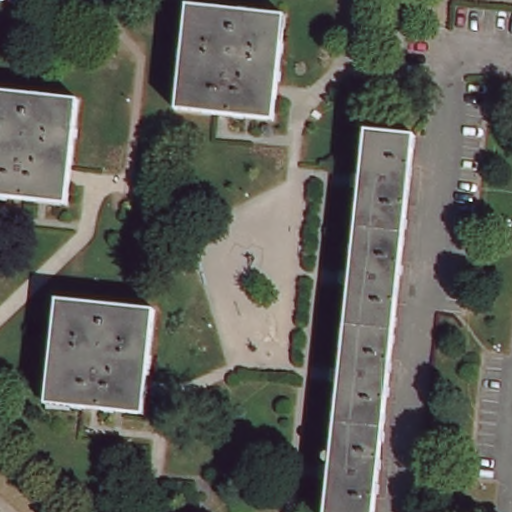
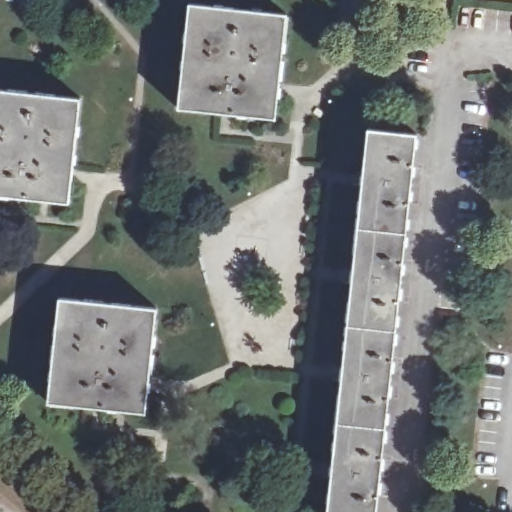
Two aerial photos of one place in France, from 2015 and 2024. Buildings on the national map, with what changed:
unchanged [(177,109),(189,4),(287,15),(276,120),(177,109)]
unchanged [(0,93),(83,102),(70,202),(0,195),(0,93)]
unchanged [(374,512),(327,512),(364,128),(413,132),(374,512)]
unchanged [(47,406),(59,301),(155,312),(143,416),(47,406)]

